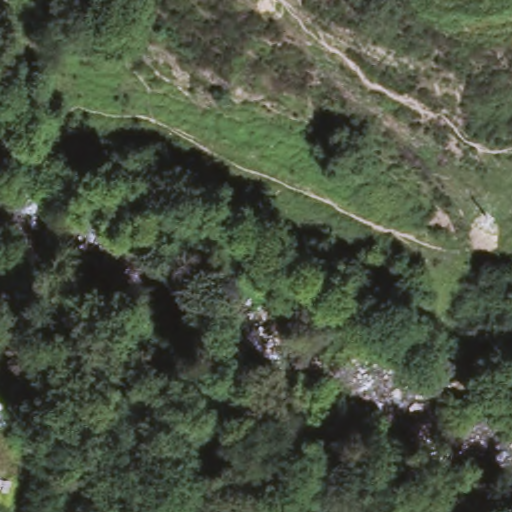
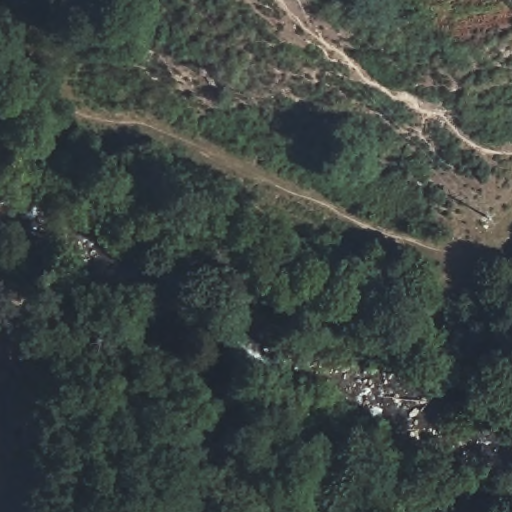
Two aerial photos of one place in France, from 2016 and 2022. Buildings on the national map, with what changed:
[]

